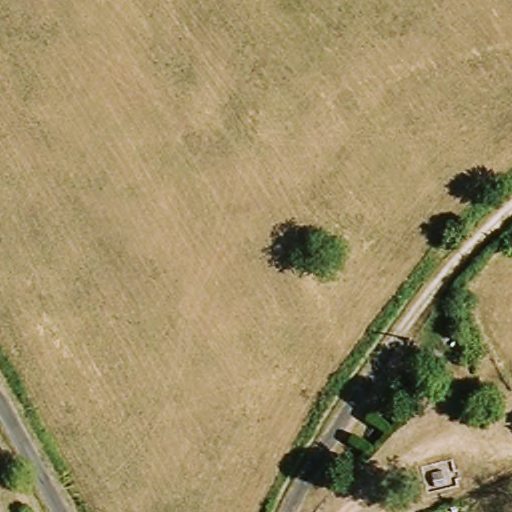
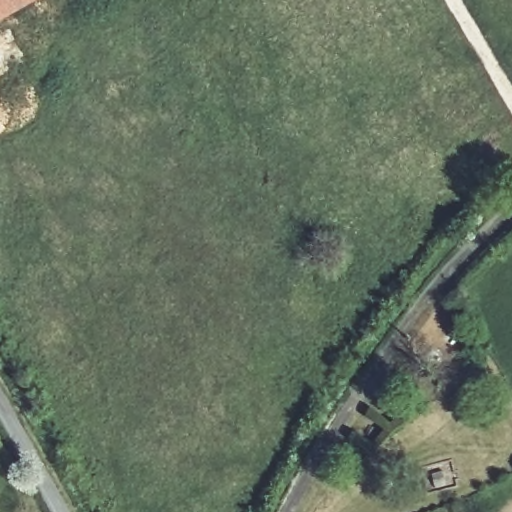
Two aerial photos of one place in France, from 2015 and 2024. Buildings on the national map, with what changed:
new [(33,0),(0,19),(0,0),(33,0)]

